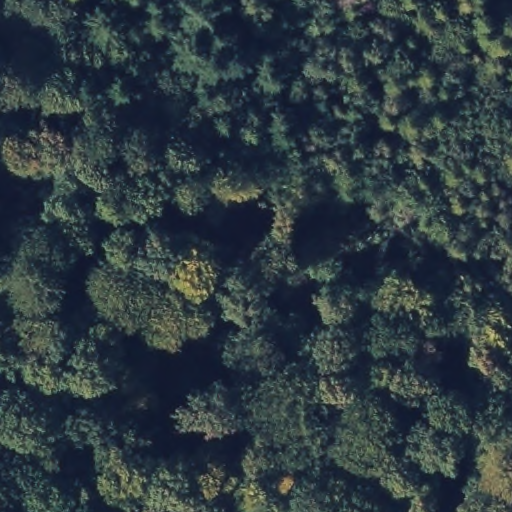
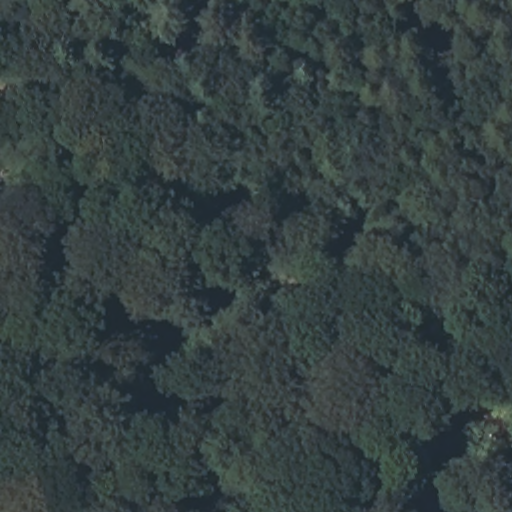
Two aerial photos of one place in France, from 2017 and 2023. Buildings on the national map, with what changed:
[]

